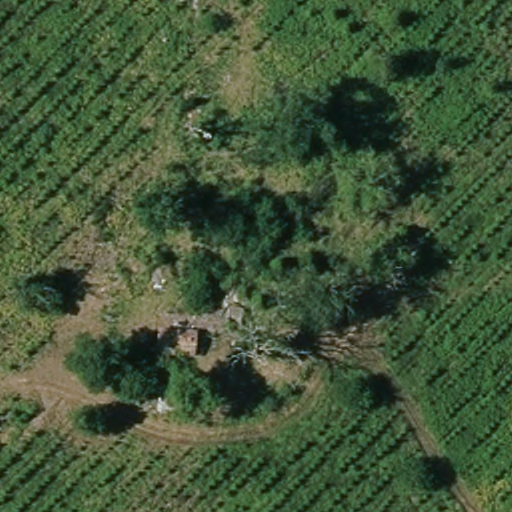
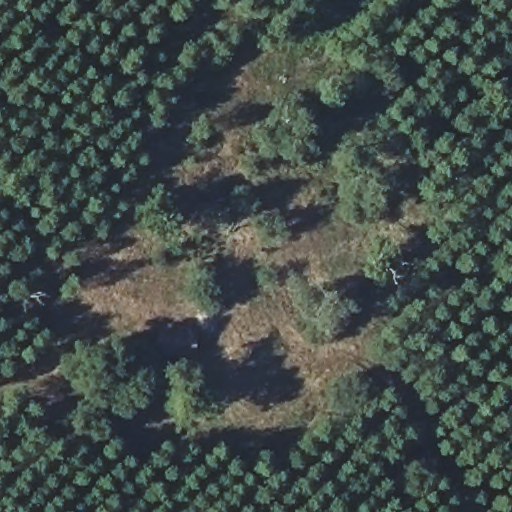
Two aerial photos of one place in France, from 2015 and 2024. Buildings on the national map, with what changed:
unchanged [(158,354),(161,315),(194,316),(191,329),(202,329),(204,357),(158,354)]

